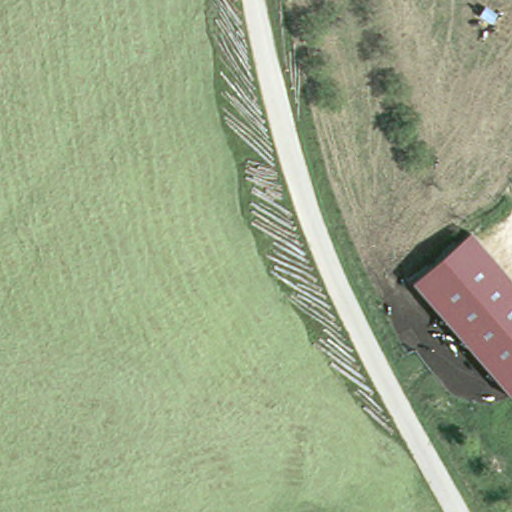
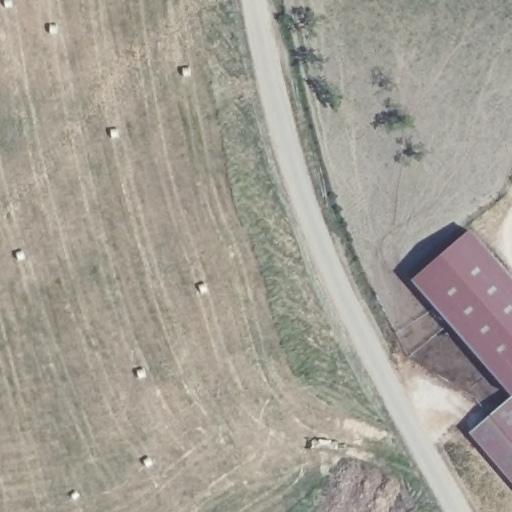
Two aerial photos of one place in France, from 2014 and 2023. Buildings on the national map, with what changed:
unchanged [(412,282),(466,232),(512,285),(512,396),(510,397),(412,282)]
new [(510,397),(512,396),(512,482),(470,432),(510,397)]

